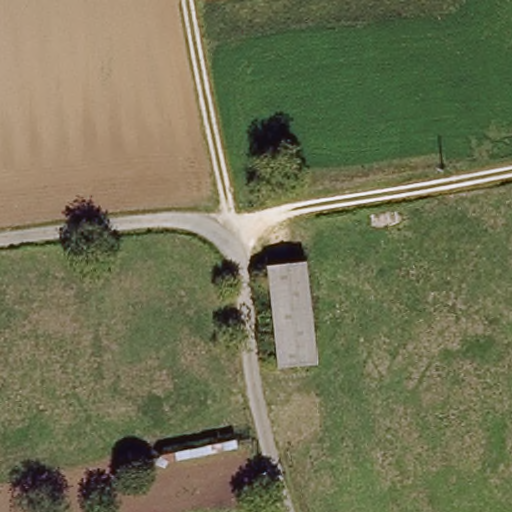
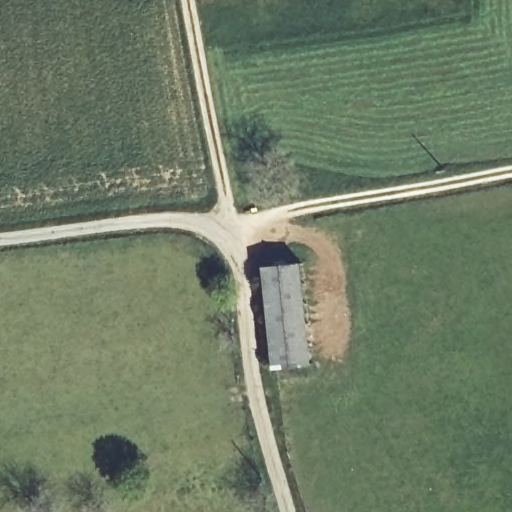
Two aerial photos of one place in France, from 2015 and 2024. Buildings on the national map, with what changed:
unchanged [(277,270),(313,268),(321,361),(282,367),(277,270)]

